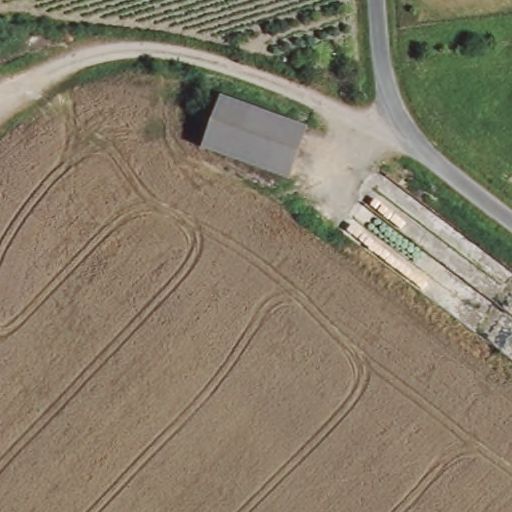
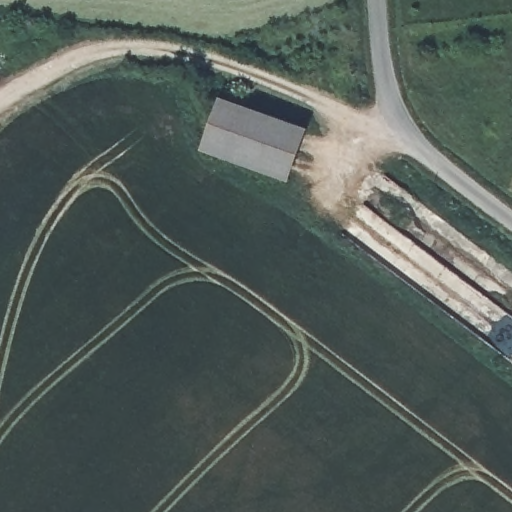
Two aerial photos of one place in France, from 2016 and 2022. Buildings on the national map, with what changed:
unchanged [(227,100),(257,112),(310,133),(291,183),(207,150),(210,144),(227,100)]

